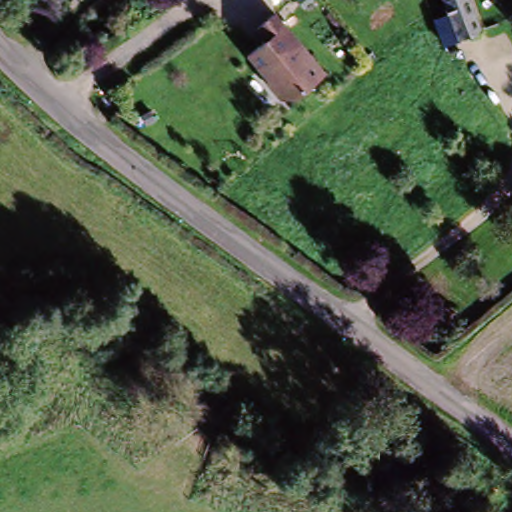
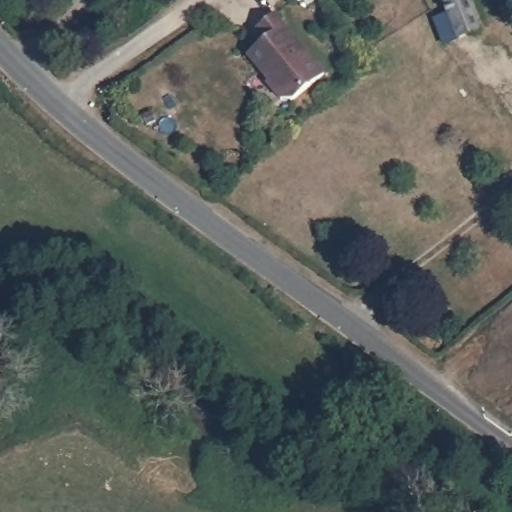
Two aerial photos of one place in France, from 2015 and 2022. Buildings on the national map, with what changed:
unchanged [(437,17),(452,12),(447,0),(468,0),(480,31),(462,38),(446,44),(437,17)]
unchanged [(272,81),(252,56),(267,42),(257,31),(276,14),(327,73),(294,101),(285,101),(270,84),(272,81)]

